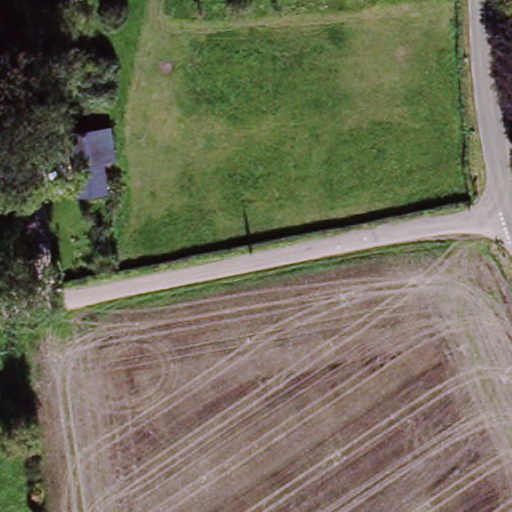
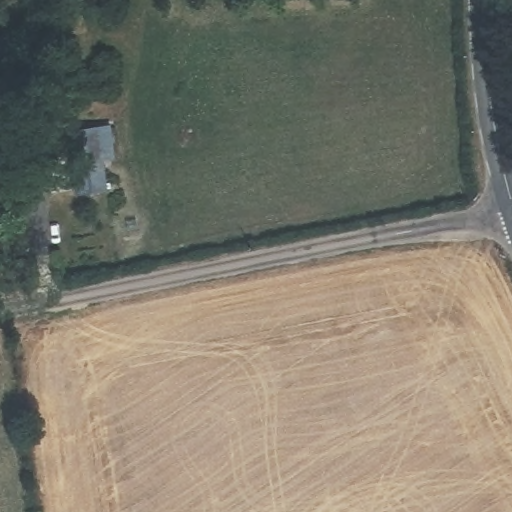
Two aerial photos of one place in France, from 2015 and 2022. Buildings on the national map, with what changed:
unchanged [(77,192),(77,130),(117,129),(117,162),(105,162),(105,192),(77,192)]

